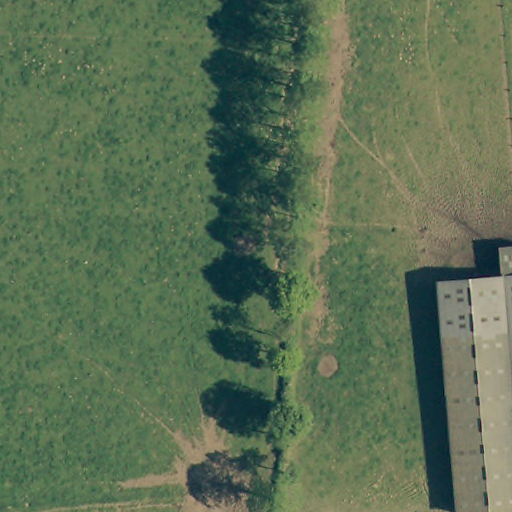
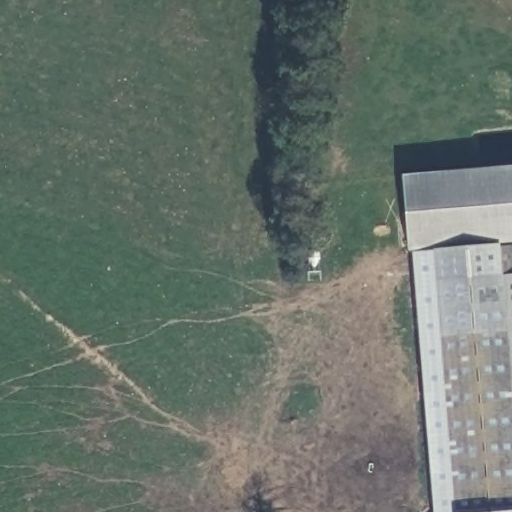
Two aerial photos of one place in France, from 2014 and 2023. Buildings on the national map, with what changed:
new [(498,277),(435,282),(433,249),(408,251),(402,174),(512,165),(512,275),(498,277)]
unchanged [(504,512),(454,512),(435,282),(498,277),(512,275),(512,511),(504,512)]

